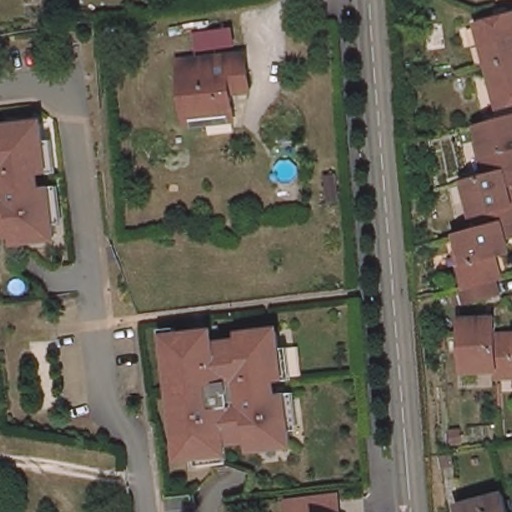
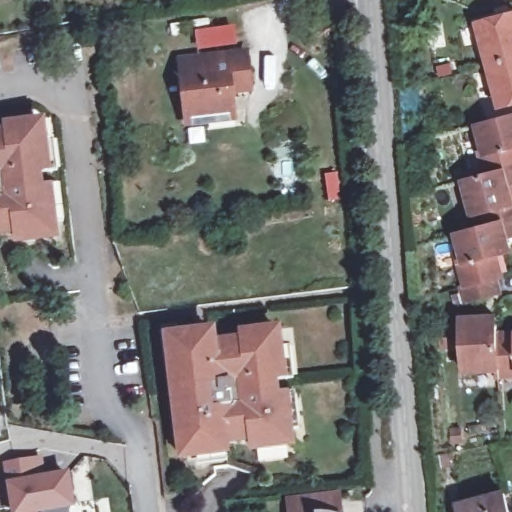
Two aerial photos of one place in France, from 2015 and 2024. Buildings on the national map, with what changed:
unchanged [(500,108),(478,25),(512,15),(512,104),(500,108)]
new [(234,28),(236,44),(199,48),(198,32),(234,28)]
unchanged [(188,123),(187,114),(181,73),(179,55),(194,54),(247,48),(250,81),(231,83),(233,108),(234,116),(188,123)]
unchanged [(461,249),(457,234),(486,226),(482,212),(476,214),(471,215),(468,201),(463,181),(485,176),(479,155),(477,142),(482,141),(478,127),(512,117),(512,184),(508,185),(512,199),(512,238),(508,239),(511,251),(503,254),(498,255),(503,276),(498,277),(502,293),(464,303),(461,287),(466,286),(459,263),(456,250),(461,249)]
unchanged [(0,130),(0,126),(35,122),(39,155),(29,156),(35,209),(45,208),(49,236),(10,241),(9,231),(0,232),(0,133),(0,130)]
unchanged [(498,377),(498,370),(478,370),(463,371),(463,366),(461,329),(461,319),(495,317),(496,328),(496,334),(512,333),(512,376),(498,377)]
unchanged [(213,328),(213,333),(203,334),(203,330),(213,328)]
unchanged [(275,367),(265,368),(271,421),(281,420),(284,448),(246,452),(245,442),(204,447),(205,457),(175,461),(163,360),(173,359),(171,346),(171,340),(190,337),(191,344),(206,342),(206,349),(236,345),(236,338),(271,334),(275,367)]
new [(47,476),(68,473),(74,508),(50,512),(13,512),(8,483),(4,464),(43,457),(47,476)]
unchanged [(340,512),(288,512),(285,492),(337,486),(340,512)]
unchanged [(510,494),(512,502),(512,512),(466,512),(464,507),(510,494)]

